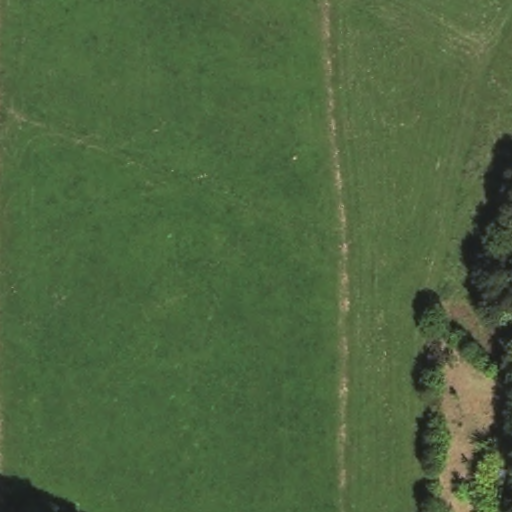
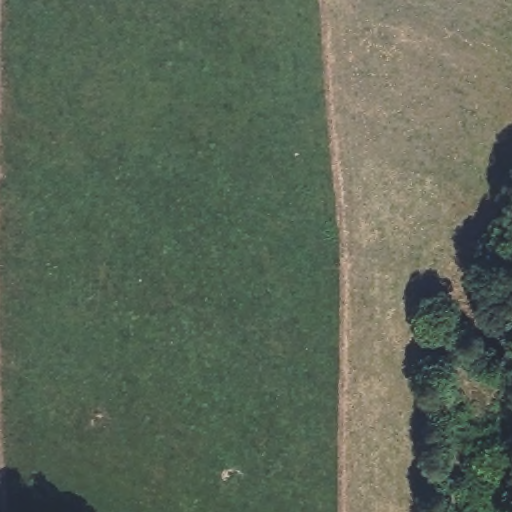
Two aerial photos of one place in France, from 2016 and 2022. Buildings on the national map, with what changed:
unchanged [(497,466),(512,466),(512,496),(496,496),(497,466)]

